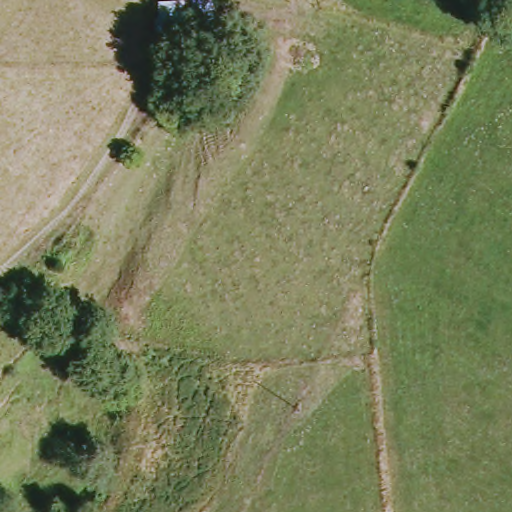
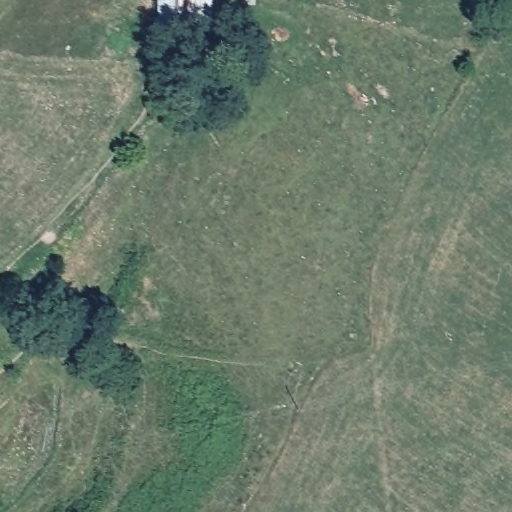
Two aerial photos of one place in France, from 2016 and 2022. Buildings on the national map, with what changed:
unchanged [(167,17),(179,17),(180,0),(217,0),(217,21),(213,47),(168,47),(167,17)]

